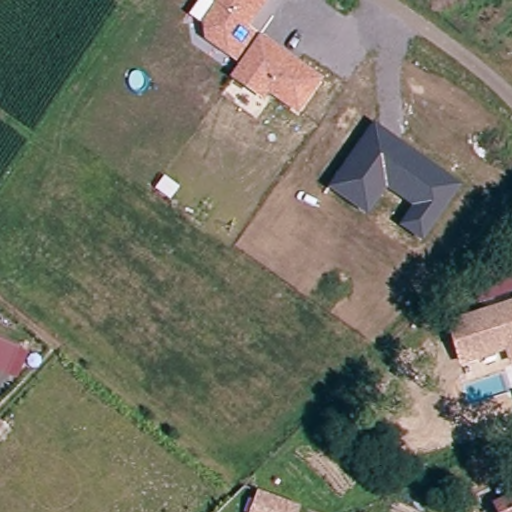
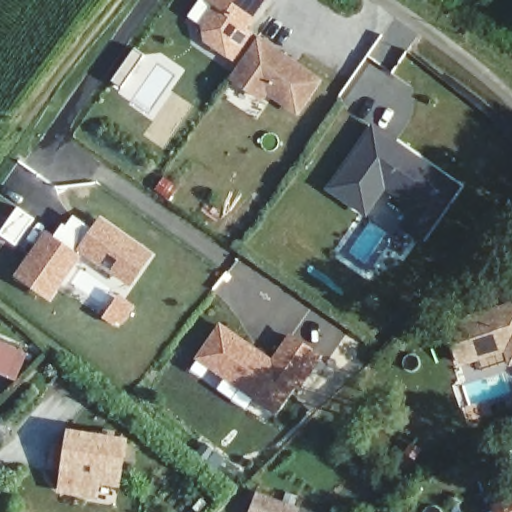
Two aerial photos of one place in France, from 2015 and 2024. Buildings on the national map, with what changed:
unchanged [(268,96),(263,105),(228,81),(240,63),(204,41),(201,22),(213,2),(209,0),(270,0),(247,28),(325,80),(299,117),(268,96)]
unchanged [(461,185),(421,245),(396,225),(410,205),(385,188),(365,215),(327,190),(373,124),(461,185)]
new [(84,255),(51,303),(14,277),(47,231),(55,237),(64,225),(68,227),(75,217),(94,230),(101,216),(155,255),(130,290),(84,255)]
unchanged [(477,306),(468,278),(512,264),(512,294),(477,306)]
unchanged [(511,367),(505,353),(460,367),(446,325),(512,301),(512,367),(511,367)]
new [(195,360),(220,323),(273,358),(290,333),(323,356),(302,388),(298,385),(277,415),(195,360)]
unchanged [(0,372),(0,345),(16,351),(6,375),(0,372)]
new [(58,491),(62,466),(50,464),(53,442),(64,443),(66,426),(129,435),(121,487),(101,483),(98,498),(58,491)]
unchanged [(277,501),(301,510),(300,512),(247,512),(253,492),(277,501)]
new [(493,505),(512,495),(512,512),(496,512),(493,505)]
demolished [(512,506),(512,512),(482,512),(507,498),(512,506)]

